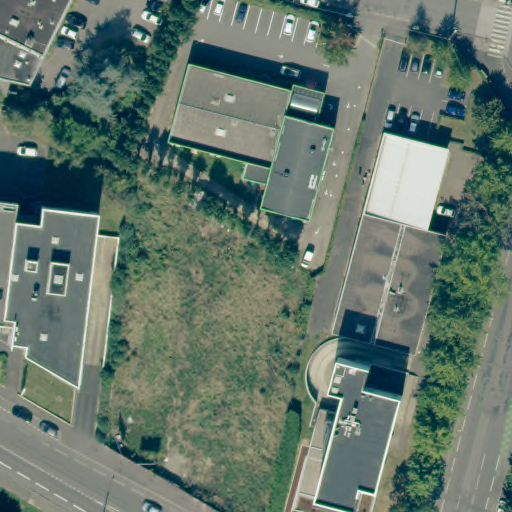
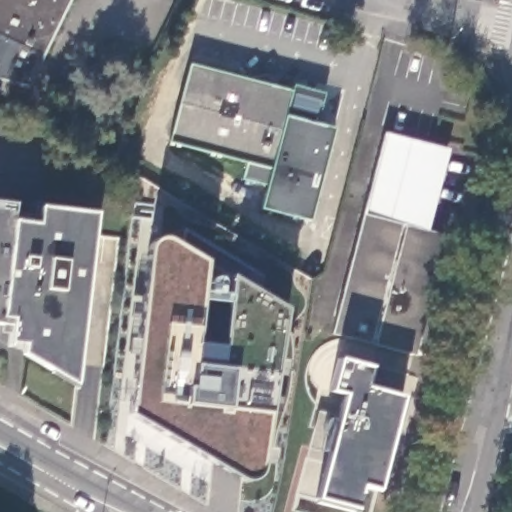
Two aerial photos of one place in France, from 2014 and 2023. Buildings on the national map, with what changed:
unchanged [(67,0),(29,79),(10,74),(6,89),(0,88),(0,0),(67,0)]
unchanged [(315,195),(309,220),(261,207),(267,185),(244,179),(248,162),(170,141),(191,65),(292,91),(293,86),(325,94),(318,123),(333,127),(315,195)]
unchanged [(332,331),(384,133),(445,148),(424,229),(442,234),(413,353),(332,331)]
demolished [(179,200),(174,215),(133,197),(135,174),(179,200)]
unchanged [(15,204),(13,218),(13,220),(36,223),(38,207),(72,211),(95,214),(93,236),(74,384),(53,372),(20,354),(20,343),(10,342),(7,342),(6,346),(5,346),(7,326),(0,325),(0,203),(15,204)]
new [(263,458),(260,473),(254,479),(245,479),(238,477),(127,414),(145,251),(149,243),(158,237),(165,238),(175,243),(286,310),(263,458)]
demolished [(288,281),(248,264),(251,240),(295,266),(288,281)]
unchanged [(339,362),(371,370),(365,390),(402,400),(377,494),(360,489),(358,495),(361,496),(357,512),(351,512),(315,502),(343,399),(330,395),(339,362)]
demolished [(113,365),(156,370),(151,413),(108,407),(113,365)]
demolished [(223,426),(221,436),(182,430),(186,393),(189,393),(192,378),(228,383),(223,422),(223,426)]
demolished [(221,436),(223,426),(223,422),(264,426),(259,464),(219,459),(221,436)]

